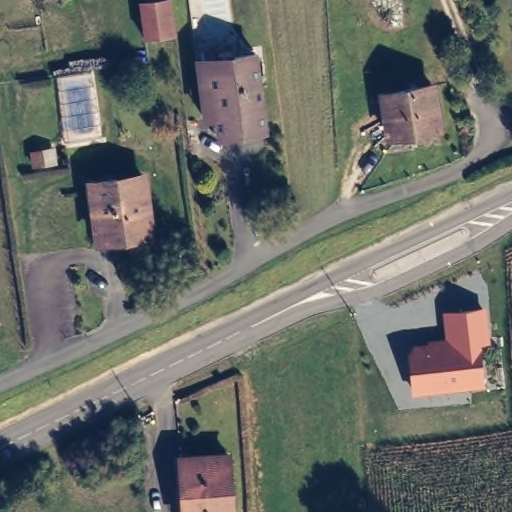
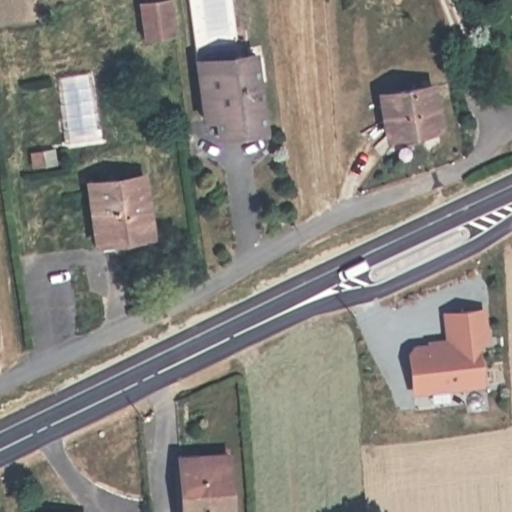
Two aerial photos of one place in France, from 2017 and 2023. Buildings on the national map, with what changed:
unchanged [(146,37),(141,0),(166,0),(173,36),(146,37)]
unchanged [(258,47),(271,122),(224,129),(220,112),(208,114),(200,54),(258,47)]
unchanged [(385,89),(434,82),(436,122),(390,130),(385,89)]
unchanged [(139,176),(146,231),(96,239),(88,184),(139,176)]
unchanged [(481,345),(483,386),(411,393),(407,353),(414,345),(428,343),(428,339),(446,337),(443,312),(487,307),(490,342),(481,345)]
unchanged [(229,459),(234,512),(183,512),(179,463),(229,459)]

